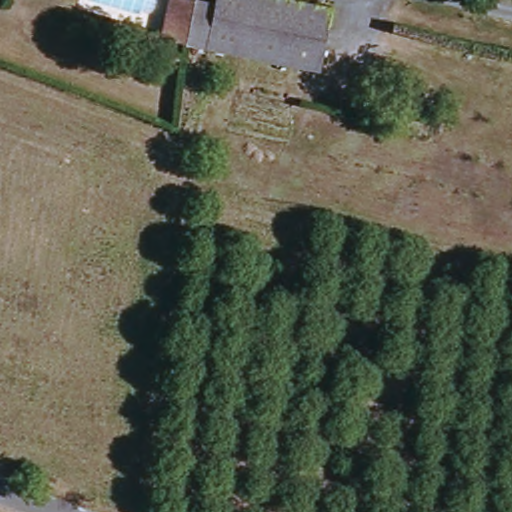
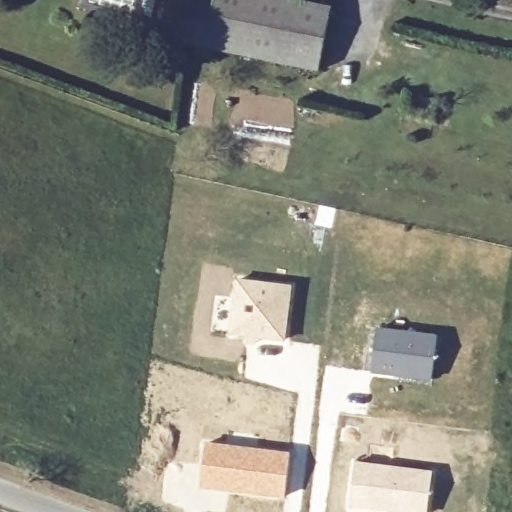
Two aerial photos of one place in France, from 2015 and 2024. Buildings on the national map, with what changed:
unchanged [(284,0),(332,10),(319,73),(189,46),(184,45),(164,41),(173,0),(181,0),(192,2),(216,5),(217,0),(284,0)]
new [(235,277),(293,284),(286,341),(229,336),(235,277)]
new [(377,325),(438,333),(432,381),(370,372),(377,325)]
new [(205,441),(291,451),(285,500),(198,488),(205,441)]
new [(353,459),(434,470),(428,512),(381,512),(346,507),(353,459)]

